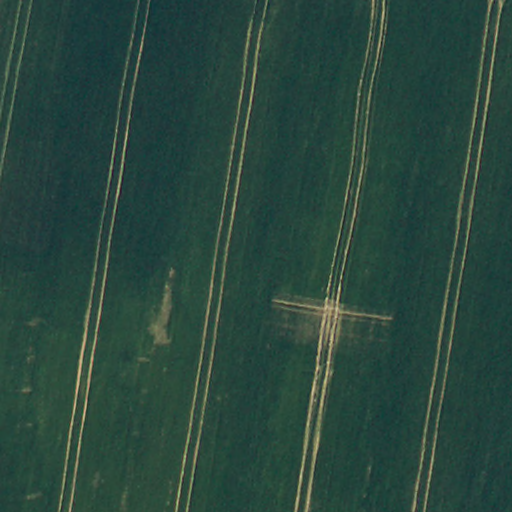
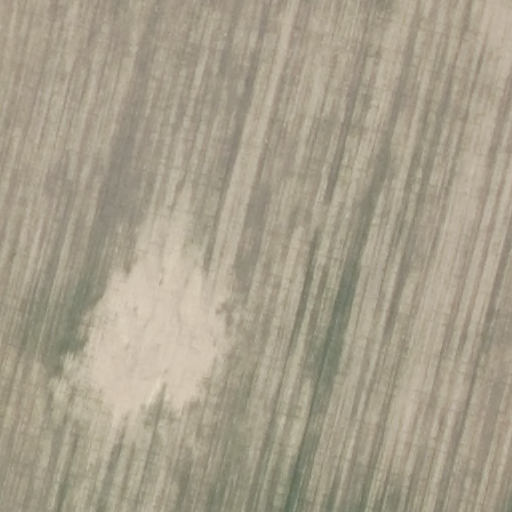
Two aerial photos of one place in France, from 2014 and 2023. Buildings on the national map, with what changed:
[]

